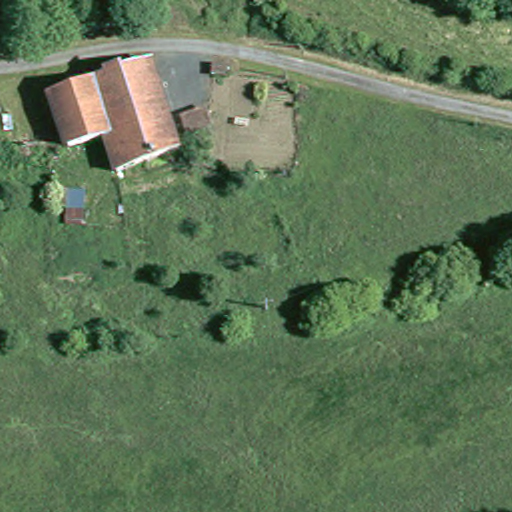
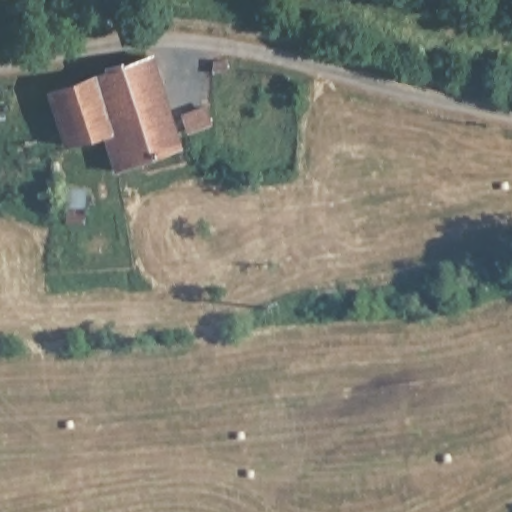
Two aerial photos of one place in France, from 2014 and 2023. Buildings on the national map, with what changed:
unchanged [(121,167),(104,135),(64,151),(41,97),(139,65),(175,150),(153,155),(121,167)]

